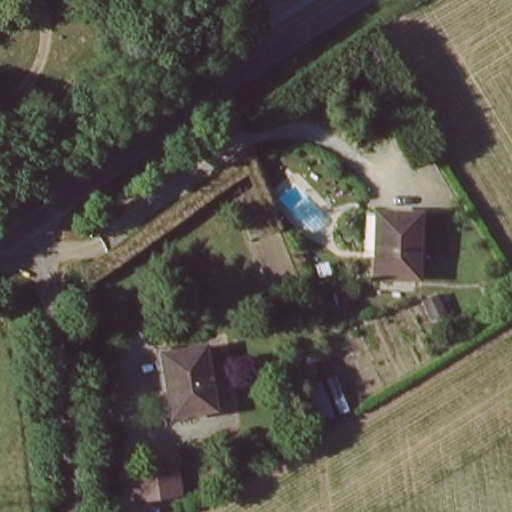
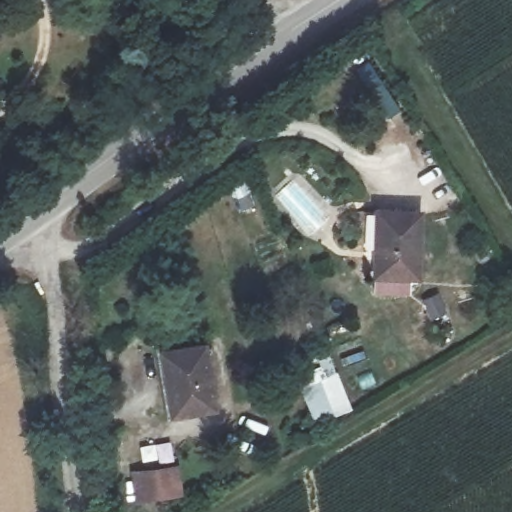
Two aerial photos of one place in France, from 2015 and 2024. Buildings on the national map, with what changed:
unchanged [(417,212),(417,280),(372,279),(370,211),(417,212)]
unchanged [(200,348),(213,411),(171,421),(157,358),(200,348)]
unchanged [(350,410),(314,425),(299,391),(336,375),(350,410)]
unchanged [(185,497),(136,503),(132,471),(182,463),(185,497)]

